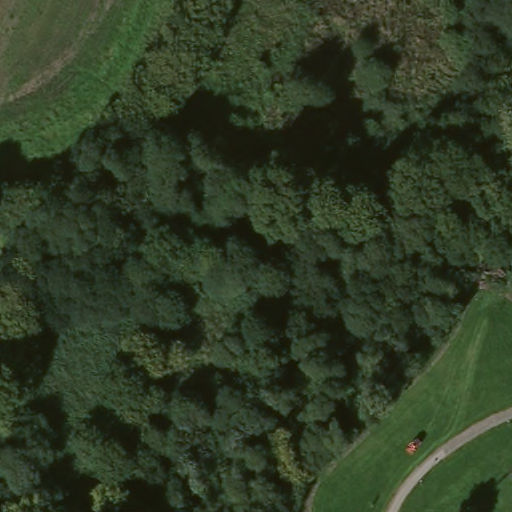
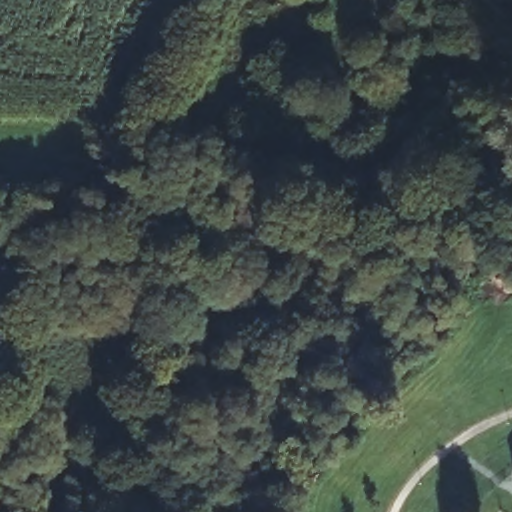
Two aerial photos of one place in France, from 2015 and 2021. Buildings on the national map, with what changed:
[]

